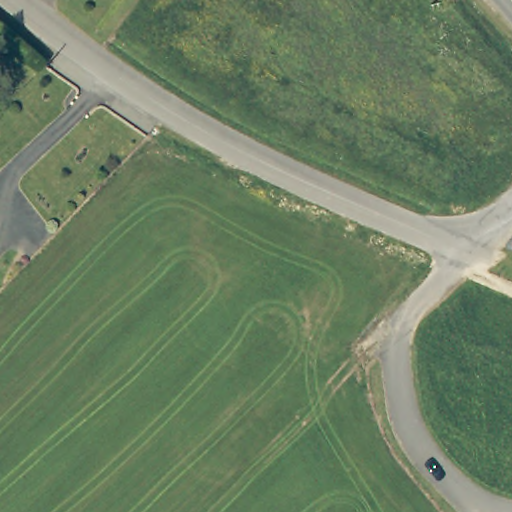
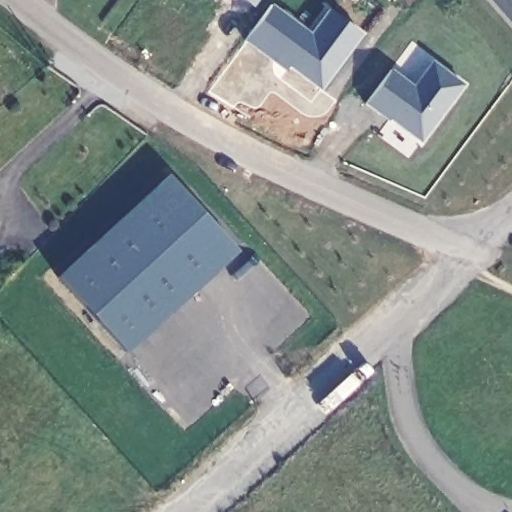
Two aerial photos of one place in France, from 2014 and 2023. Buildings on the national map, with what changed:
new [(392,71),(413,87),(432,61),(463,84),(421,141),(368,102),(392,71)]
new [(170,179),(238,254),(126,355),(58,280),(170,179)]

